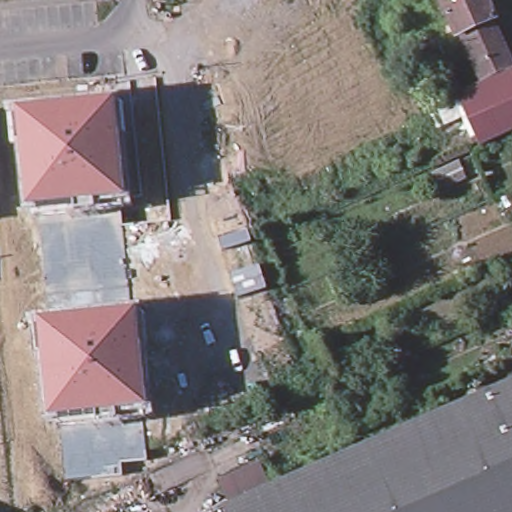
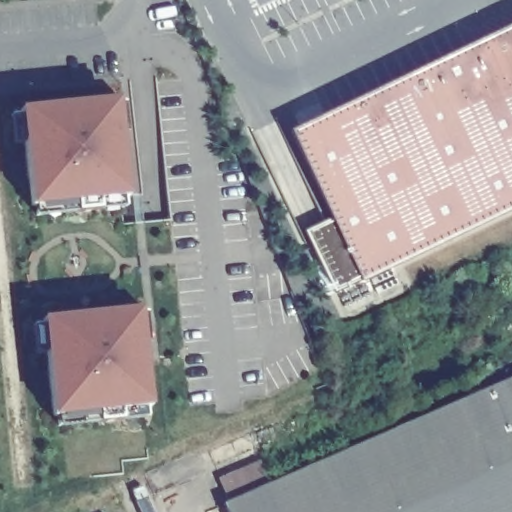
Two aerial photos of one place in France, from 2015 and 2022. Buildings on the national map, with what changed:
demolished [(492,18),(488,20),(456,34),(452,36),(435,0),(483,0),(492,18)]
demolished [(474,72),(456,34),(488,20),(508,67),(478,81),(473,83),(469,75),(474,72)]
new [(334,295),(306,233),(333,221),(290,132),(512,27),(512,210),(361,282),(334,295)]
demolished [(414,60),(434,52),(452,92),(433,101),(414,60)]
demolished [(512,68),(512,77),(509,70),(512,68)]
demolished [(512,77),(512,127),(482,141),(460,93),(509,70),(512,77)]
unchanged [(118,97),(130,202),(99,205),(99,211),(77,212),(77,210),(38,214),(37,207),(27,210),(16,108),(118,97)]
unchanged [(151,412),(121,416),(121,420),(104,423),(103,418),(59,422),(58,416),(50,417),(43,352),(38,353),(35,321),(140,308),(151,412)]
unchanged [(228,505),(268,487),(512,381),(512,512),(225,512),(223,507),(228,505)]
unchanged [(218,483),(258,466),(268,487),(228,505),(218,483)]

